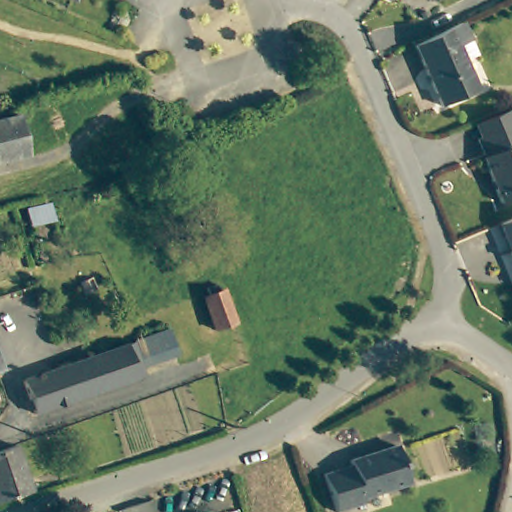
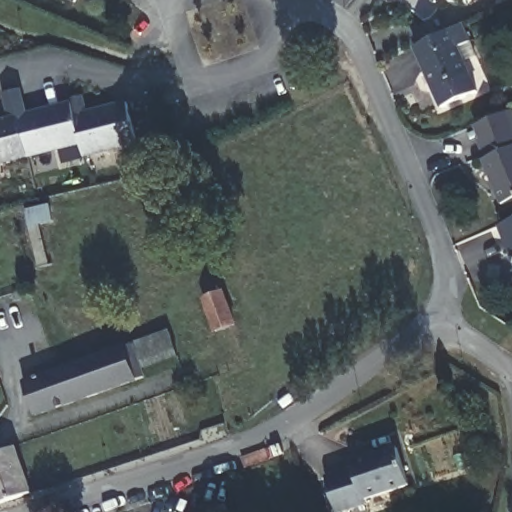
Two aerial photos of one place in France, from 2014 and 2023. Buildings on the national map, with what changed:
unchanged [(436,1),(435,0),(436,0),(436,1)]
unchanged [(425,41),(463,22),(472,42),(460,47),(478,91),(442,106),(417,45),(425,41)]
new [(81,145),(30,158),(22,121),(9,124),(2,92),(25,89),(29,110),(71,101),(70,98),(85,95),(88,111),(128,101),(138,144),(84,156),(81,145)]
unchanged [(30,158),(0,164),(0,125),(22,121),(30,158)]
unchanged [(512,122),(512,212),(507,214),(489,169),(491,168),(483,151),(488,149),(482,135),(512,122)]
unchanged [(512,226),(512,247),(505,230),(512,226)]
unchanged [(226,300),(235,322),(217,329),(206,298),(205,295),(222,290),(226,300)]
unchanged [(179,349),(143,360),(149,383),(38,416),(27,383),(175,336),(179,349)]
unchanged [(0,373),(0,371),(1,373),(0,373)]
unchanged [(351,468),(350,463),(395,446),(408,484),(363,501),(365,505),(346,512),(336,512),(324,478),(351,468)]
unchanged [(7,505),(0,507),(0,455),(16,450),(32,498),(7,505)]

